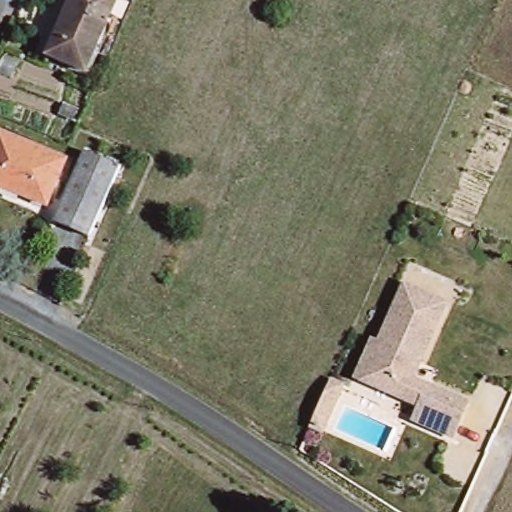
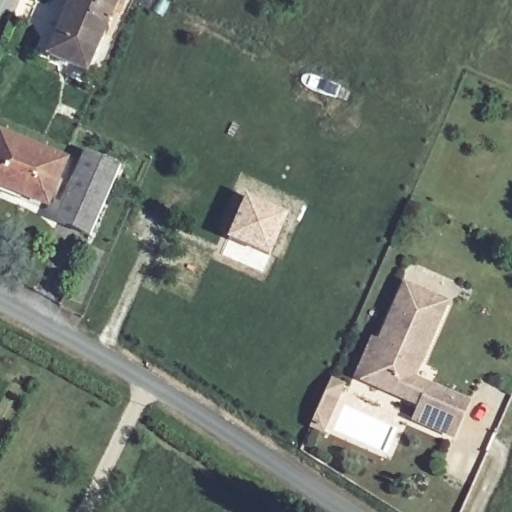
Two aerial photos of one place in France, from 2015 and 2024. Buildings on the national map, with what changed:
unchanged [(41,56),(65,0),(126,0),(122,9),(106,2),(77,72),(41,56)]
unchanged [(35,195),(0,181),(0,153),(9,132),(54,150),(35,195)]
unchanged [(89,234),(50,219),(79,149),(119,164),(89,234)]
new [(229,239),(246,197),(288,216),(270,255),(229,239)]
unchanged [(450,298),(418,373),(473,398),(455,440),(412,422),(418,406),(353,378),(370,336),(380,340),(405,280),(450,298)]
unchanged [(308,427),(330,377),(347,385),(326,435),(308,427)]

